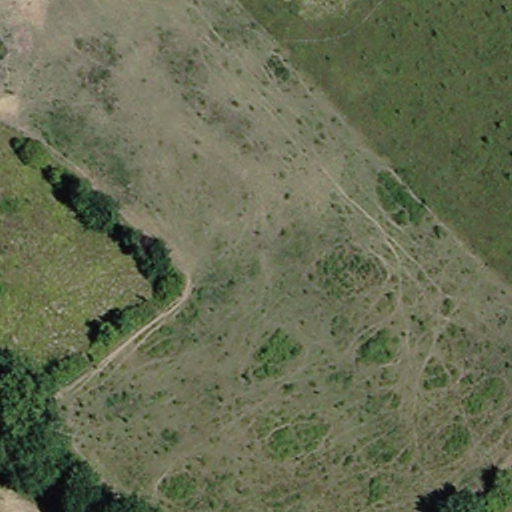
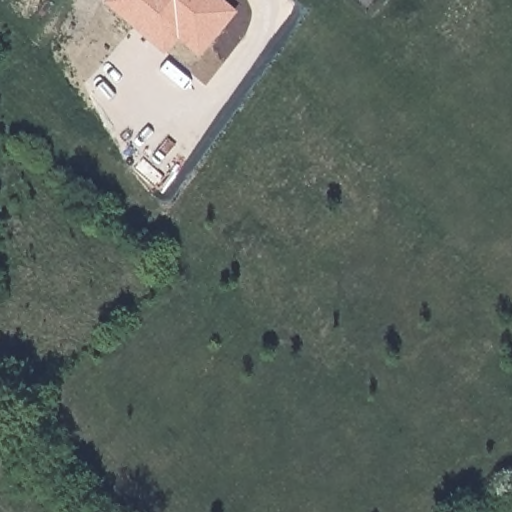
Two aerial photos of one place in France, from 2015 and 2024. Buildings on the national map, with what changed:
new [(108,0),(224,0),(239,12),(199,58),(179,40),(166,55),(105,3),(108,0)]

